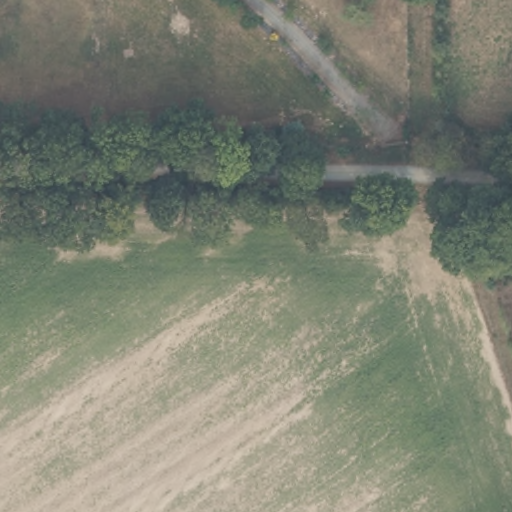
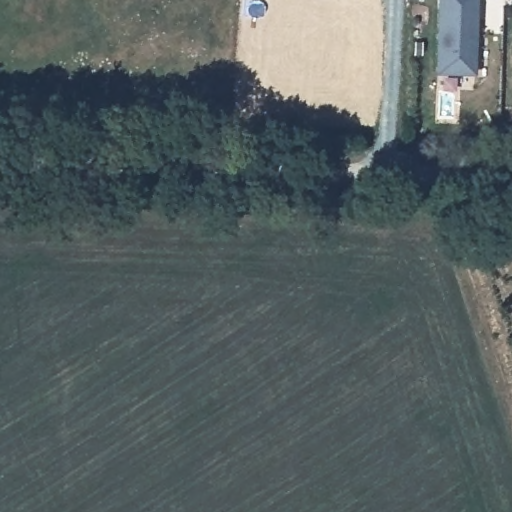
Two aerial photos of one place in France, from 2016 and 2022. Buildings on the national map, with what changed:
new [(440,0),(477,0),(474,72),(438,71),(439,30),(440,0)]

